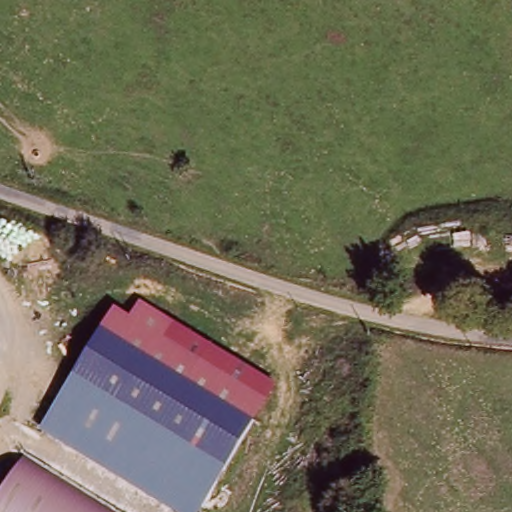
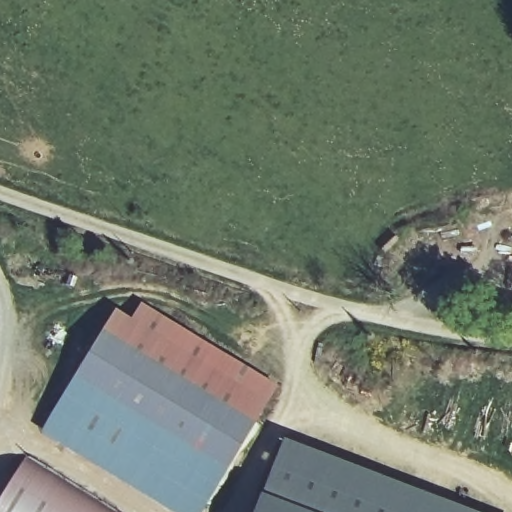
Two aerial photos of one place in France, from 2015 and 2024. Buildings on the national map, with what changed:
unchanged [(190,382),(175,374),(147,357),(124,344),(102,332),(115,308),(133,319),(142,302),(276,382),(255,421),(190,382)]
unchanged [(255,421),(207,501),(113,446),(100,438),(56,411),(102,332),(124,344),(147,357),(175,374),(190,382),(255,421)]
unchanged [(175,512),(43,431),(56,411),(100,438),(113,446),(207,501),(201,512),(175,512)]
new [(479,512),(255,512),(283,435),(479,512)]
unchanged [(55,475),(69,483),(119,512),(0,512),(0,502),(27,458),(55,475)]

